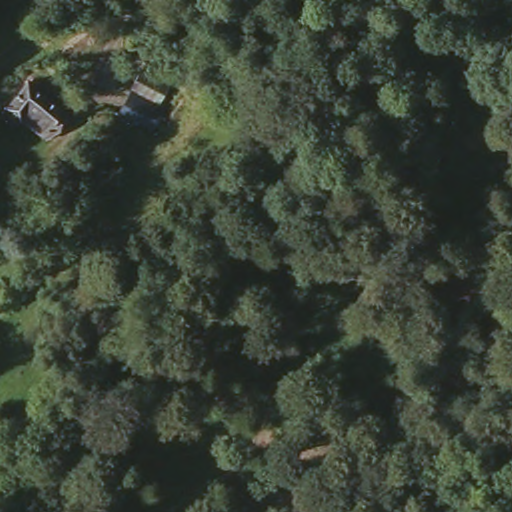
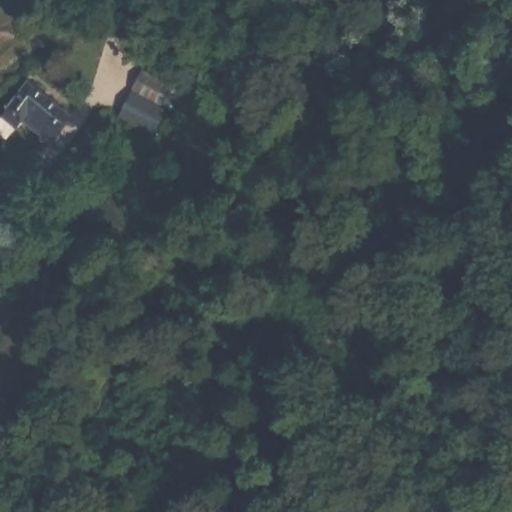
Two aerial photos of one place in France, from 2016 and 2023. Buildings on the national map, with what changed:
unchanged [(75,104),(60,133),(29,119),(24,128),(6,119),(28,81),(75,104)]
unchanged [(163,89),(148,132),(119,122),(138,81),(163,89)]

